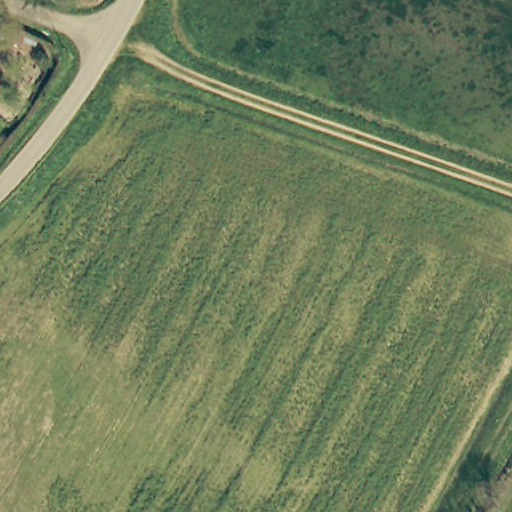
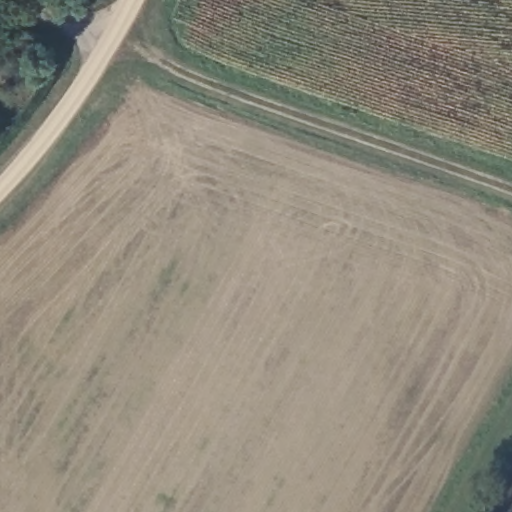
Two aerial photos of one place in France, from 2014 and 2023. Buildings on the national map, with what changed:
[]

